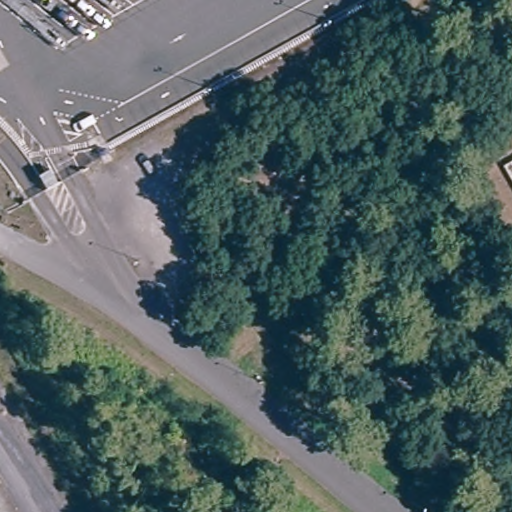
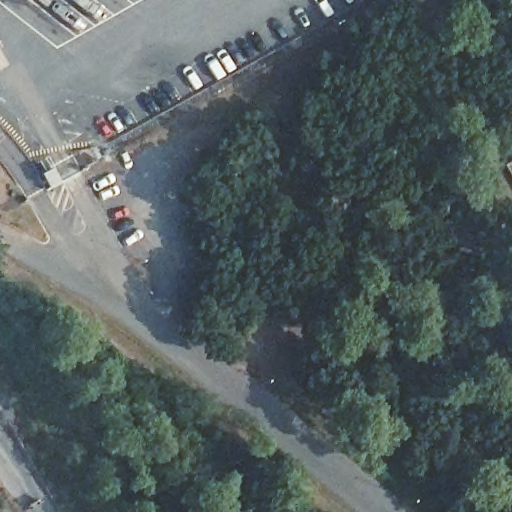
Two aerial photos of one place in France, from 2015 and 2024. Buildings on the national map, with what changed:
[]

